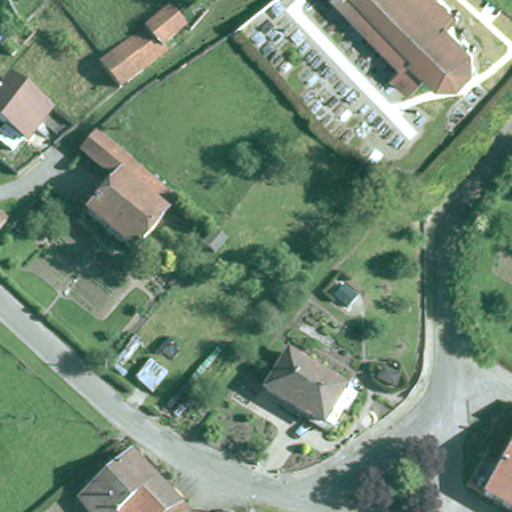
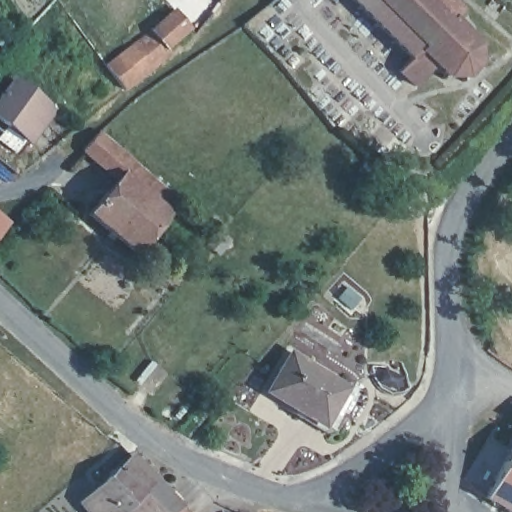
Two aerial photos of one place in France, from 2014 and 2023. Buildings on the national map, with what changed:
unchanged [(455,9),(459,7),(460,9),(458,12),(461,14),(458,17),(455,14),(450,20),(460,30),(465,25),(467,28),(462,32),(472,42),(475,41),(477,44),(474,46),(473,60),(477,64),(477,66),(472,64),(460,76),(460,81),(457,81),(457,76),(442,76),(440,80),(437,79),(439,75),(429,66),(410,86),(393,70),(405,57),(389,42),(386,44),(383,42),(387,39),(372,24),(369,27),(367,25),(370,22),(355,7),(352,10),(349,8),(352,4),(348,0),(446,0),(455,9)]
unchanged [(169,5),(184,23),(170,36),(175,41),(165,48),(120,84),(100,60),(144,25),(169,5)]
unchanged [(0,138),(0,127),(5,120),(0,117),(0,90),(12,74),(50,104),(40,117),(38,116),(24,135),(22,134),(12,147),(0,138)]
unchanged [(134,247),(87,209),(116,174),(82,144),(97,126),(167,207),(134,247)]
unchanged [(5,224),(0,231),(0,219),(5,224)]
unchanged [(214,255),(207,250),(202,246),(215,231),(225,240),(214,255)]
unchanged [(357,298),(347,310),(332,298),(343,286),(357,298)]
unchanged [(344,382),(322,420),(265,387),(287,348),(344,382)]
unchanged [(155,512),(89,512),(74,493),(126,445),(175,496),(155,512)]
unchanged [(512,450),(512,512),(501,512),(484,502),(512,450)]
unchanged [(186,512),(155,512),(175,496),(186,512)]

